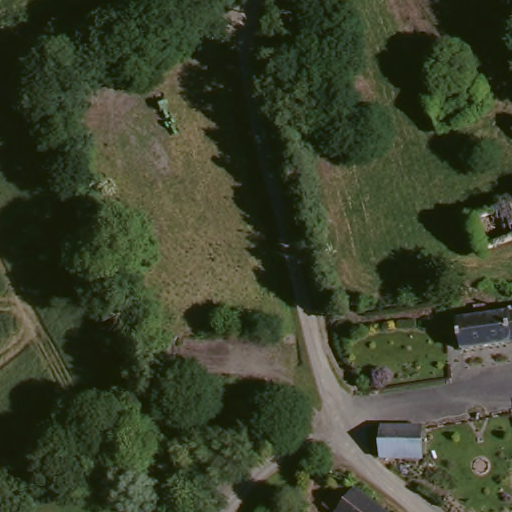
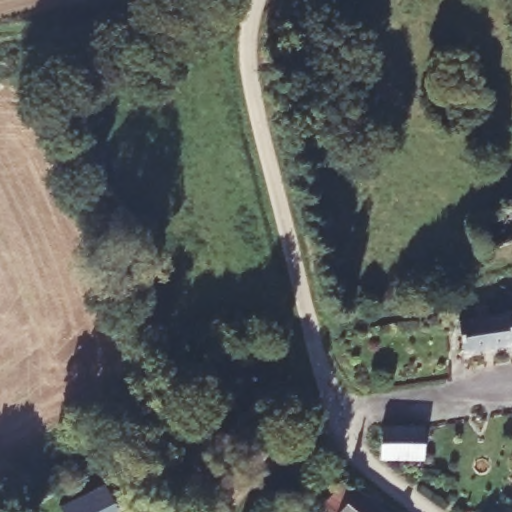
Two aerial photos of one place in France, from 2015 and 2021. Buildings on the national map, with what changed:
unchanged [(512,309),(512,344),(461,349),(459,315),(512,309)]
unchanged [(420,430),(419,465),(384,463),(383,431),(420,430)]
new [(60,503),(108,481),(123,512),(64,512),(60,503)]
unchanged [(351,490),(385,512),(334,512),(351,490)]

